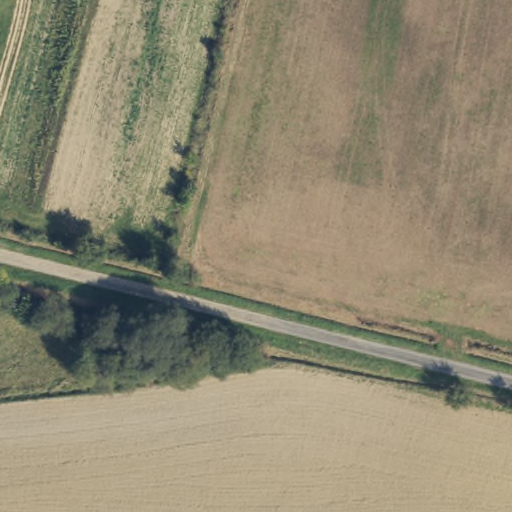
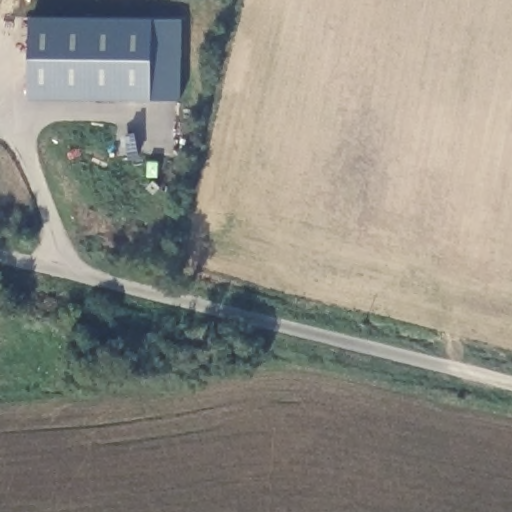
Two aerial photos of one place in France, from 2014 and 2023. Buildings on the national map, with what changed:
new [(32,15),(180,17),(180,98),(30,98),(32,15)]

